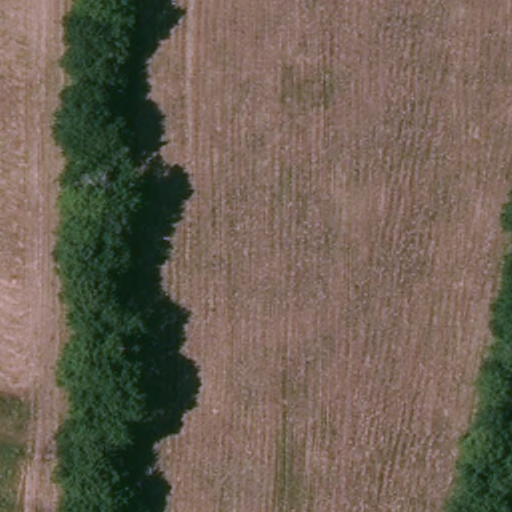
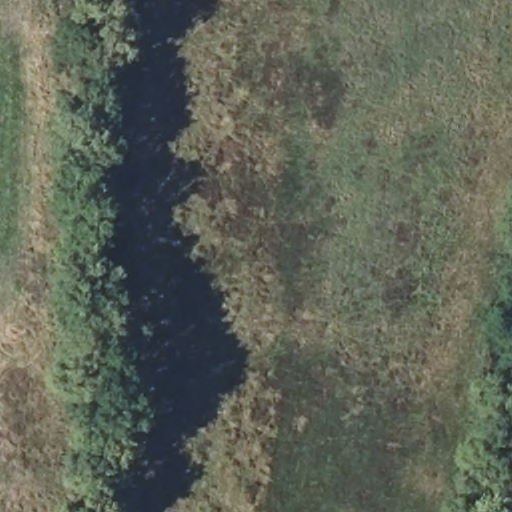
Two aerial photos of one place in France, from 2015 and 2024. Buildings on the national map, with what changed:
[]

